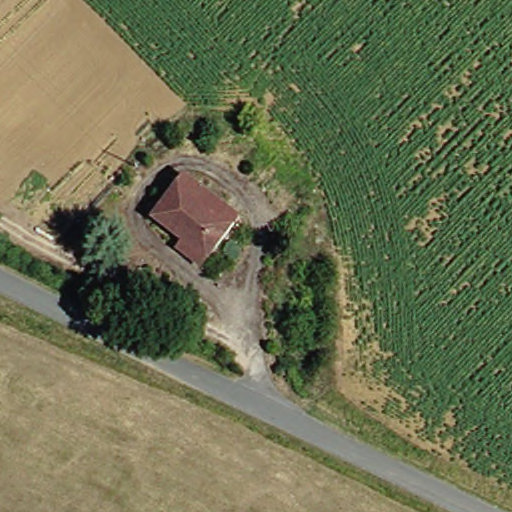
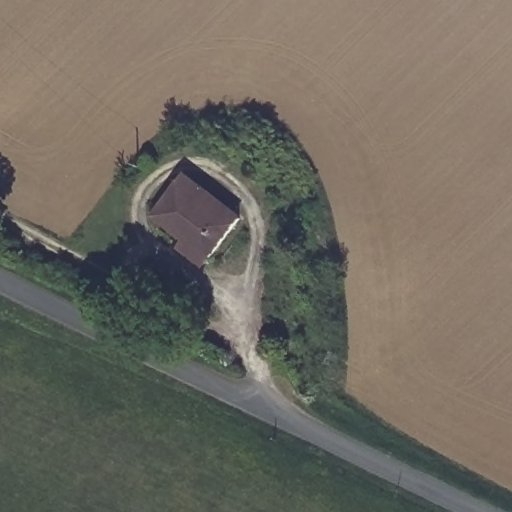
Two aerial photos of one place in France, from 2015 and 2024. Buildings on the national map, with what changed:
unchanged [(189,245),(195,237),(164,214),(192,176),(246,217),(217,254),(212,262),(189,245)]

